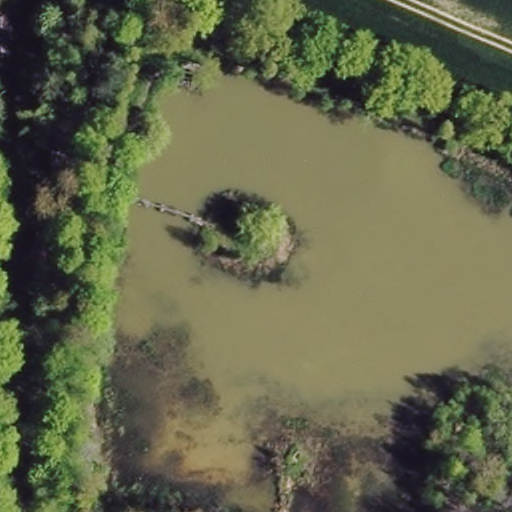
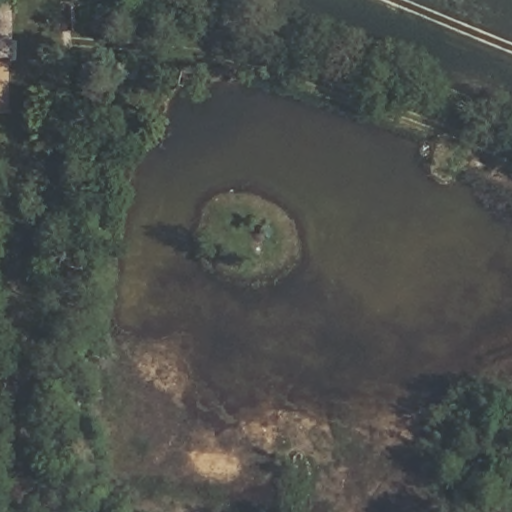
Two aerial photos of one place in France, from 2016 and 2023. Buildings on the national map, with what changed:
unchanged [(0,56),(0,3),(8,2),(8,42),(8,55),(0,56)]

